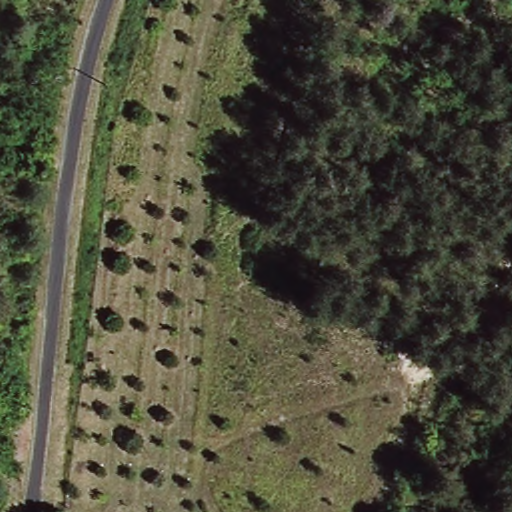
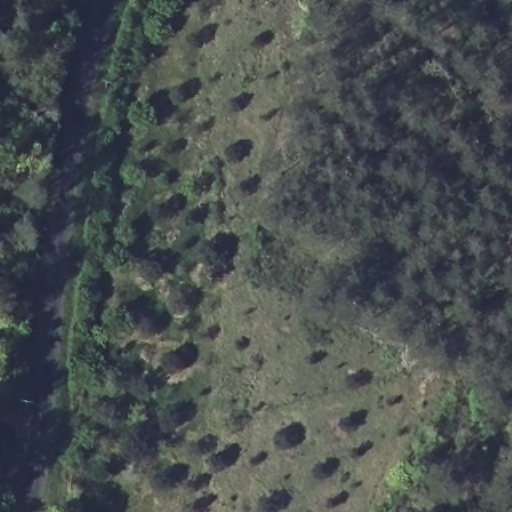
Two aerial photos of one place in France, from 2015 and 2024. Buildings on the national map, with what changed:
[]

